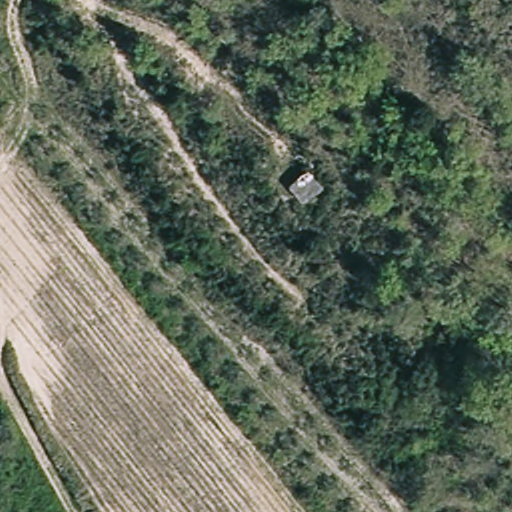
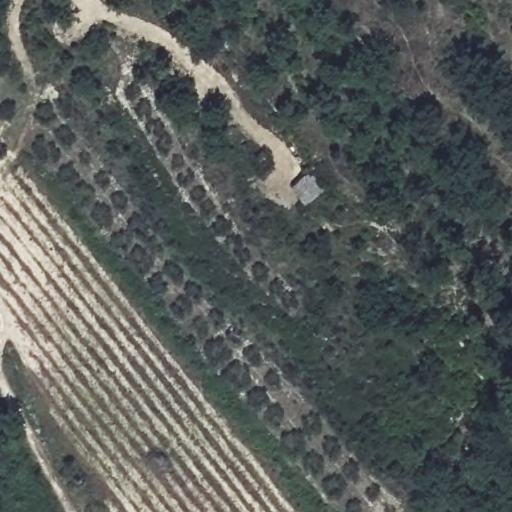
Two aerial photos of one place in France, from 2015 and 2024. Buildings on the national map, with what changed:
unchanged [(325,187),(304,205),(288,184),(308,169),(325,187)]

